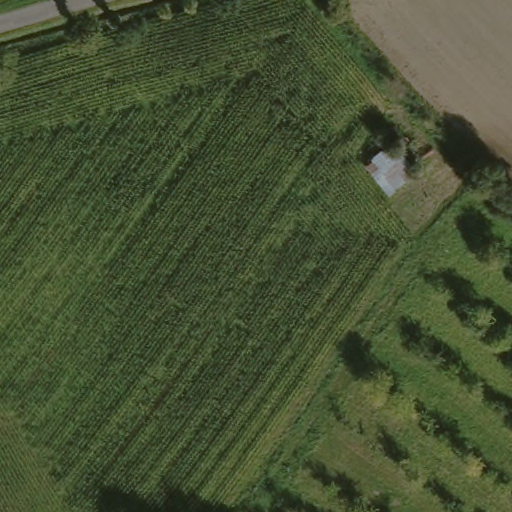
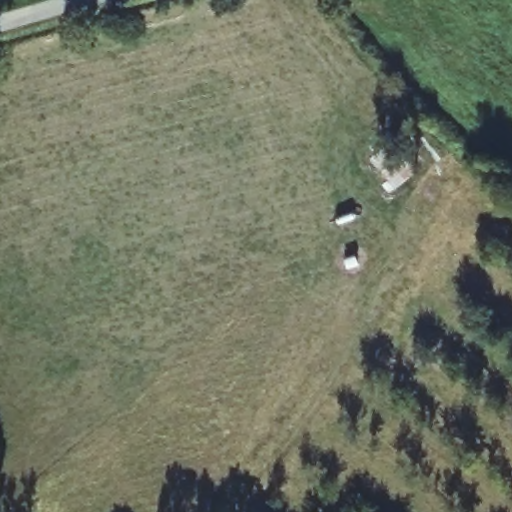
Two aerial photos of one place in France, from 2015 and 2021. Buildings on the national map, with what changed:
unchanged [(420,171),(391,191),(370,162),(397,143),(420,171)]

